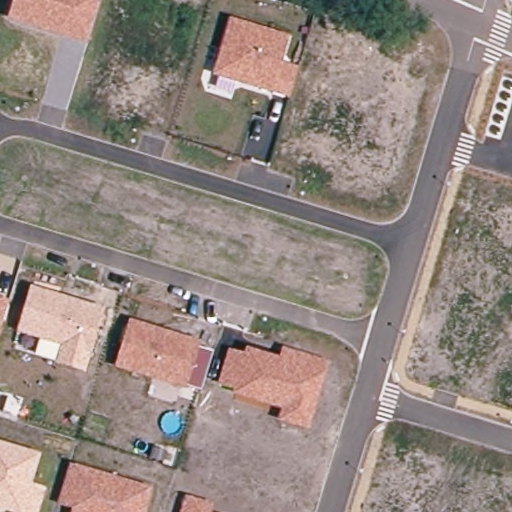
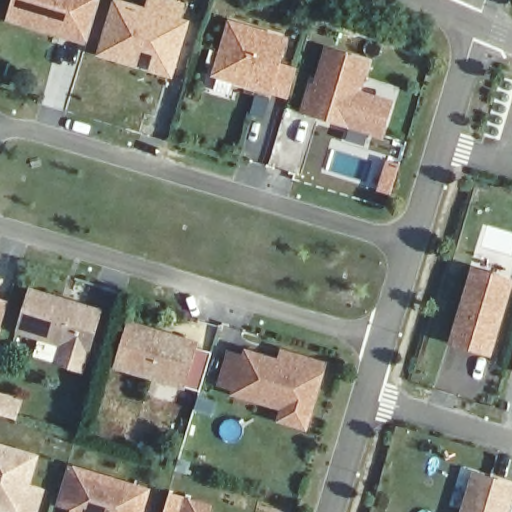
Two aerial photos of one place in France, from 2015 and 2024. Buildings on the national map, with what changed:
unchanged [(6,21),(13,0),(101,0),(88,45),(6,21)]
new [(126,0),(144,6),(145,0),(177,0),(187,3),(183,18),(190,20),(172,80),(144,71),(149,57),(142,55),(138,69),(94,56),(111,0),(126,0)]
unchanged [(289,36),(282,61),(298,66),(289,98),(212,77),(229,18),(289,36)]
new [(364,90),(396,99),(384,140),(299,114),(308,81),(314,83),(324,45),(372,61),(364,90)]
new [(448,345),(472,268),(512,280),(512,289),(491,358),(448,345)]
unchanged [(105,309),(85,373),(53,364),(59,346),(15,333),(29,287),(105,309)]
unchanged [(0,330),(0,297),(9,300),(0,330)]
unchanged [(200,341),(199,348),(212,352),(202,390),(188,386),(187,390),(113,368),(128,319),(200,341)]
unchanged [(328,362),(308,430),(276,421),(279,410),(230,396),(233,390),(217,385),(226,351),(243,355),(244,347),(279,358),(282,348),(328,362)]
unchanged [(39,512),(0,512),(0,442),(40,455),(32,485),(45,488),(39,512)]
unchanged [(70,509),(58,506),(69,465),(151,489),(145,512),(70,512),(70,509)]
new [(471,468),(512,481),(512,508),(511,512),(459,512),(471,468)]
unchanged [(210,512),(180,512),(184,496),(213,504),(210,512)]

